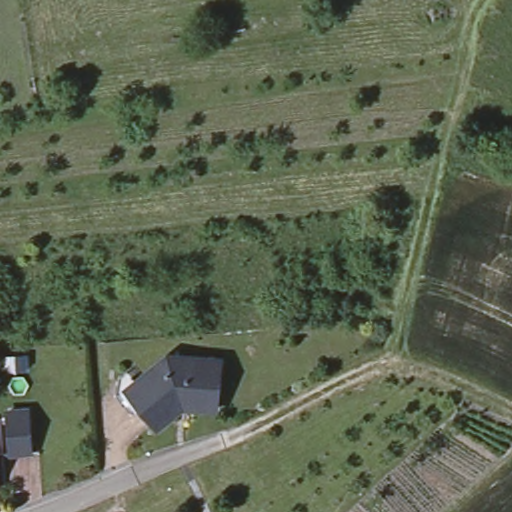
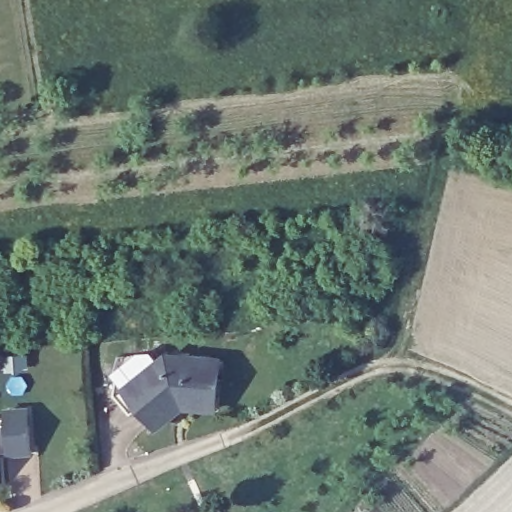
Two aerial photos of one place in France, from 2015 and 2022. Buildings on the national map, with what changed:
unchanged [(155,419),(128,379),(169,351),(178,351),(182,401),(155,419)]
unchanged [(217,352),(215,401),(182,401),(178,351),(217,352)]
unchanged [(28,408),(30,449),(7,451),(4,410),(28,408)]

